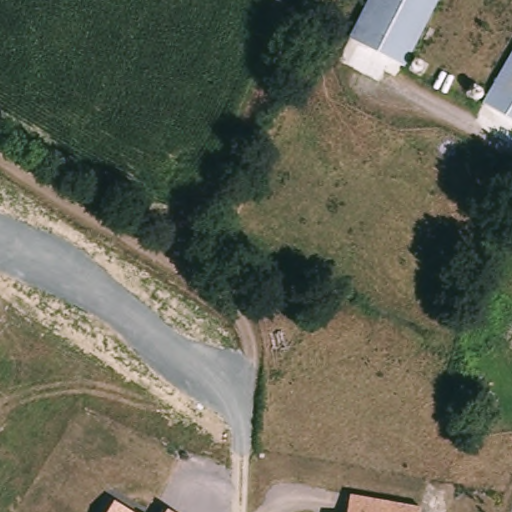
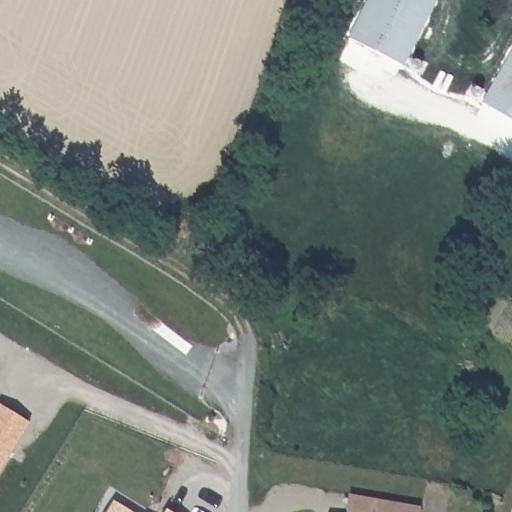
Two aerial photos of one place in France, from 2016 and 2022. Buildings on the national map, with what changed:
unchanged [(347,38),(366,0),(434,0),(400,66),(347,38)]
unchanged [(512,42),(512,112),(482,94),(512,42)]
new [(28,421),(0,467),(0,404),(28,421)]
unchanged [(350,495),(422,509),(422,512),(347,512),(350,495)]
unchanged [(115,501),(133,512),(108,512),(115,501)]
unchanged [(168,510),(172,512),(166,512),(168,510)]

